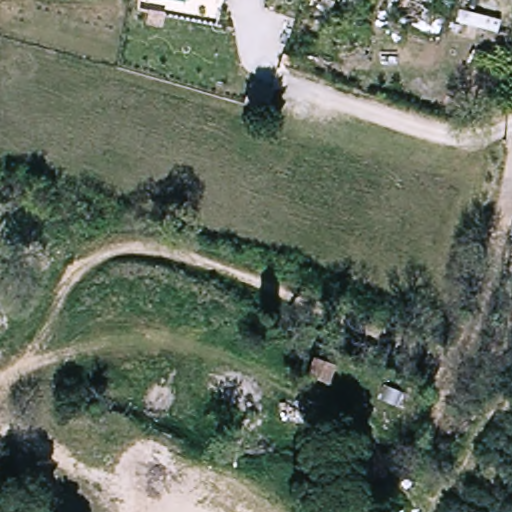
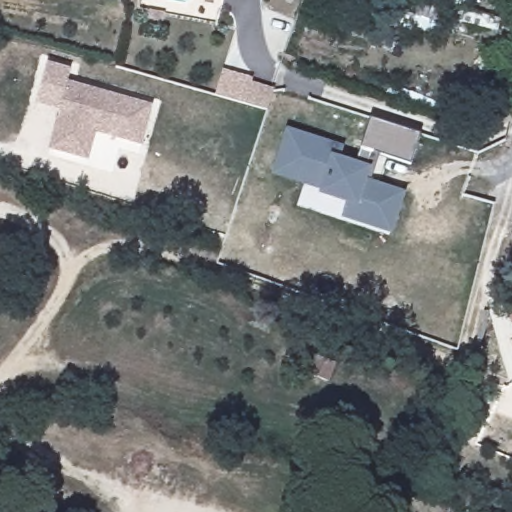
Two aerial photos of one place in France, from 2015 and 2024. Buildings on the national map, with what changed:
new [(80,159),(43,146),(56,108),(33,100),(46,62),(69,70),(65,82),(147,110),(134,147),(103,136),(89,132),(80,159)]
unchanged [(249,92),(272,100),(264,121),(242,113),(249,92)]
new [(386,241),(367,235),(338,225),(343,211),(319,202),(320,198),(272,182),(285,142),(340,160),(337,171),(352,176),(368,129),(418,145),(408,176),(376,166),(367,195),(379,199),(398,205),(386,241)]
unchanged [(343,359),(330,389),(306,377),(320,348),(343,359)]

